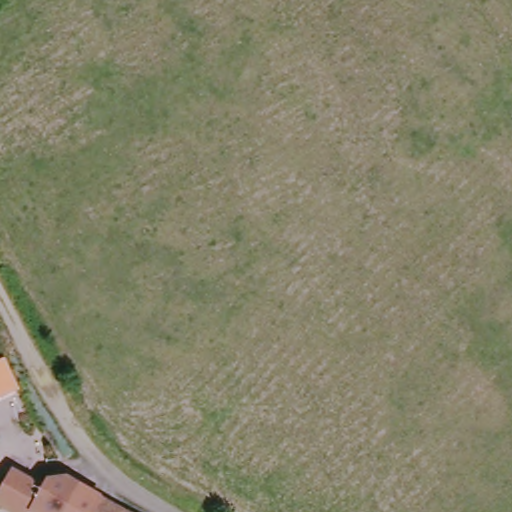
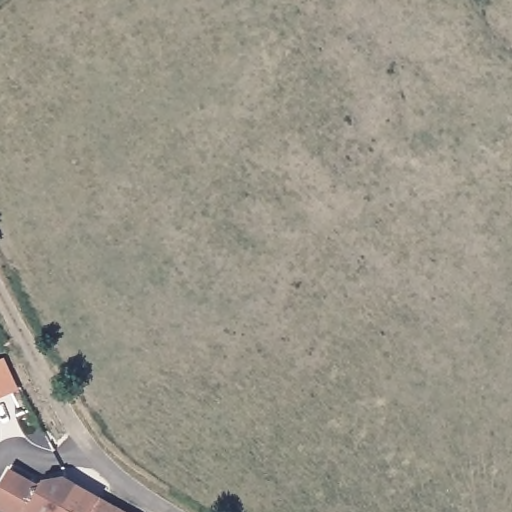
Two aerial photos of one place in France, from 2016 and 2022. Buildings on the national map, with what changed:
unchanged [(0,500),(0,483),(9,465),(12,466),(40,478),(41,475),(48,475),(59,475),(61,476),(97,498),(90,512),(25,512),(0,500)]
unchanged [(97,498),(121,512),(90,512),(97,498)]

